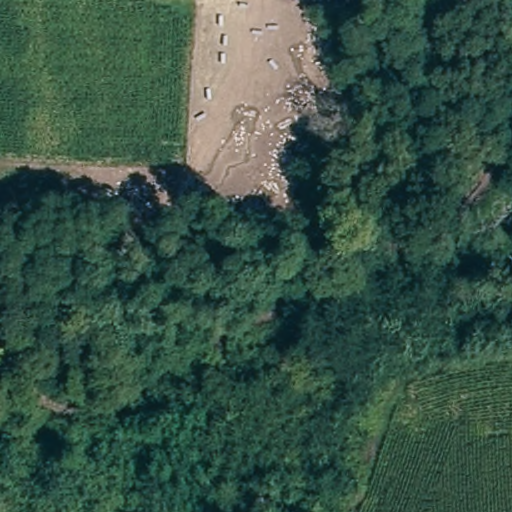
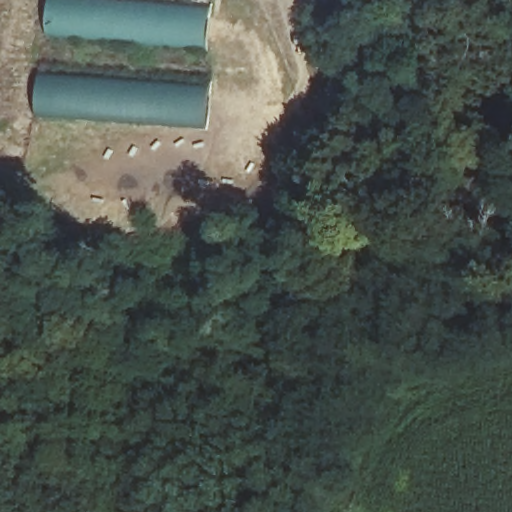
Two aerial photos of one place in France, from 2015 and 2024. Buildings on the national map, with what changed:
new [(53,0),(94,0),(211,10),(209,47),(49,33),(53,0)]
new [(42,77),(212,90),(209,127),(40,114),(42,77)]

